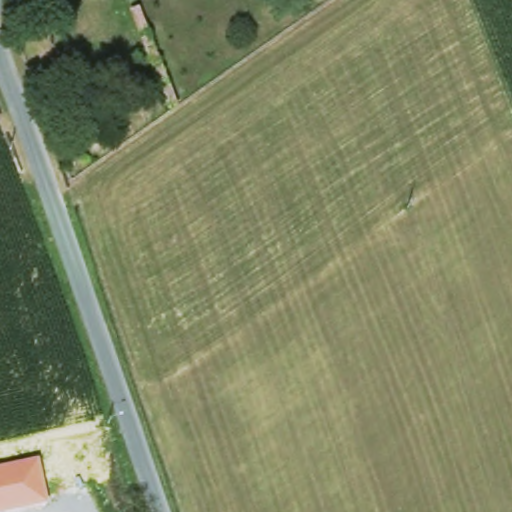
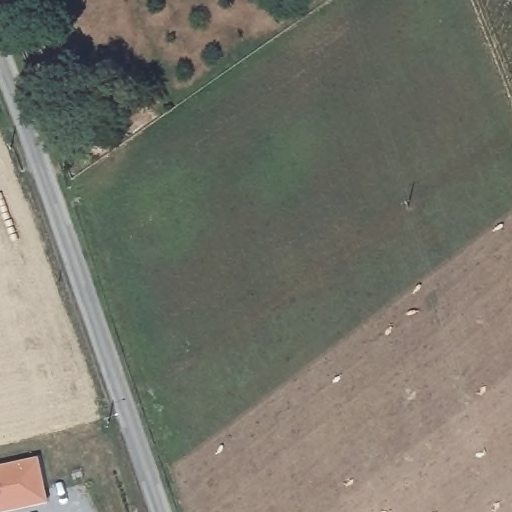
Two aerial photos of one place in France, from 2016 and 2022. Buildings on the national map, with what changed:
unchanged [(49,502),(4,512),(0,512),(0,466),(39,457),(49,502)]

